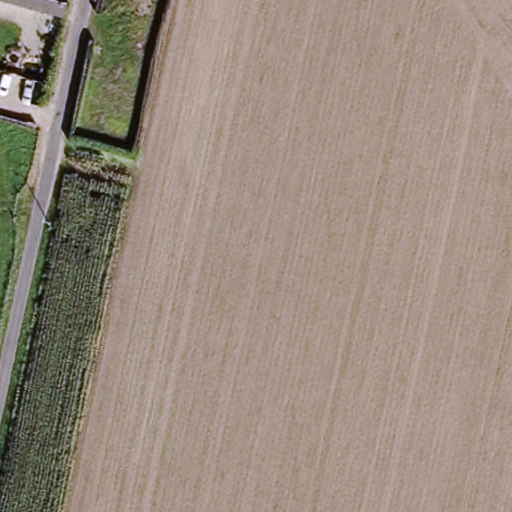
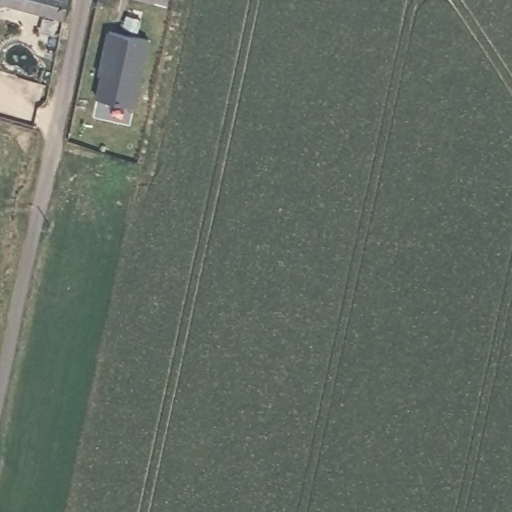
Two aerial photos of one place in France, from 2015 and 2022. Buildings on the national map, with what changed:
unchanged [(60,17),(0,1),(0,0),(65,0),(60,17)]
demolished [(161,24),(158,51),(120,45),(126,16),(161,24)]
new [(94,93),(101,62),(99,61),(107,27),(146,36),(131,102),(94,93)]

